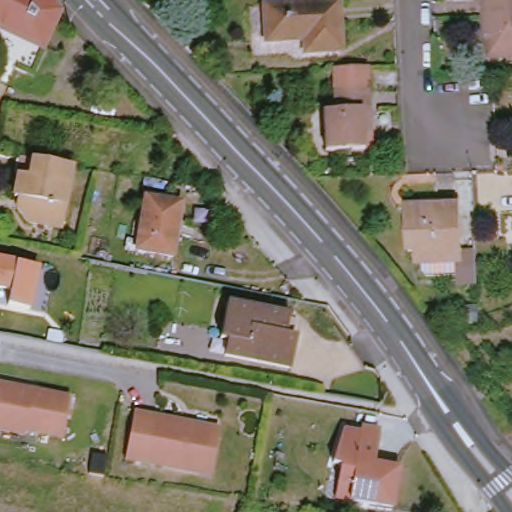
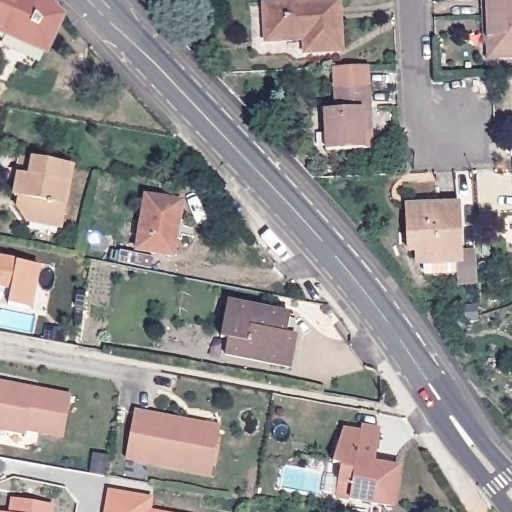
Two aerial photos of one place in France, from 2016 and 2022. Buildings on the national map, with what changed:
unchanged [(66,12),(40,71),(0,54),(10,31),(0,26),(0,0),(54,0),(66,12)]
unchanged [(486,16),(486,0),(512,0),(512,15),(486,16)]
unchanged [(310,43),(272,44),(271,10),(345,7),(347,54),(312,56),(310,43)]
unchanged [(512,15),(512,55),(490,56),(489,40),(492,40),(492,32),(487,32),(486,16),(512,15)]
unchanged [(330,115),(340,113),(340,91),(342,91),(341,71),(371,70),(373,90),(375,90),(377,133),(370,134),(370,152),(331,154),(330,115)]
unchanged [(67,230),(37,226),(22,210),(23,203),(16,202),(21,178),(25,158),(37,160),(78,168),(67,230)]
unchanged [(143,252),(148,229),(140,227),(142,216),(150,217),(153,200),(188,207),(185,225),(190,226),(190,240),(182,238),(178,258),(143,252)]
unchanged [(481,278),(481,287),(466,288),(465,262),(460,262),(461,278),(432,280),(427,270),(428,260),(425,260),(423,253),(413,252),(413,210),(465,208),(465,248),(480,246),(481,278)]
unchanged [(30,311),(8,306),(11,290),(0,288),(0,260),(40,269),(30,311)]
unchanged [(228,354),(228,338),(225,337),(232,302),(291,314),(287,334),(298,337),(291,366),(228,354)]
unchanged [(32,396),(45,398),(45,395),(76,401),(68,441),(30,433),(30,437),(0,432),(0,418),(2,406),(0,406),(0,388),(0,385),(29,391),(32,396)]
unchanged [(227,432),(226,438),(218,479),(132,461),(141,415),(195,426),(227,432)]
unchanged [(340,481),(343,465),(335,462),(340,448),(345,429),(362,432),(363,426),(372,427),(381,429),(377,454),(376,463),(401,467),(395,505),(352,498),(338,496),(340,481)]
new [(152,511),(158,512),(104,512),(108,490),(153,498),(152,511)]
new [(10,512),(12,499),(53,505),(53,512),(10,512)]

